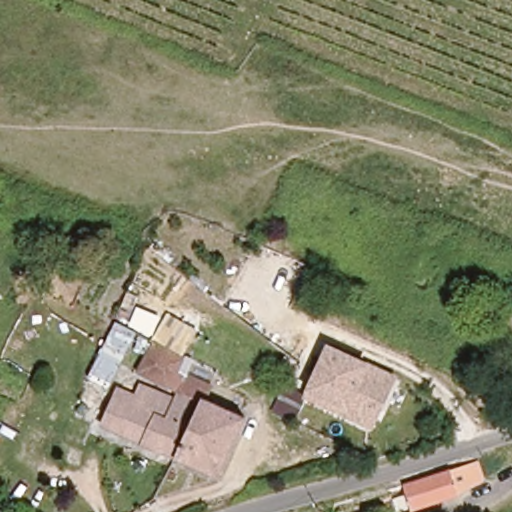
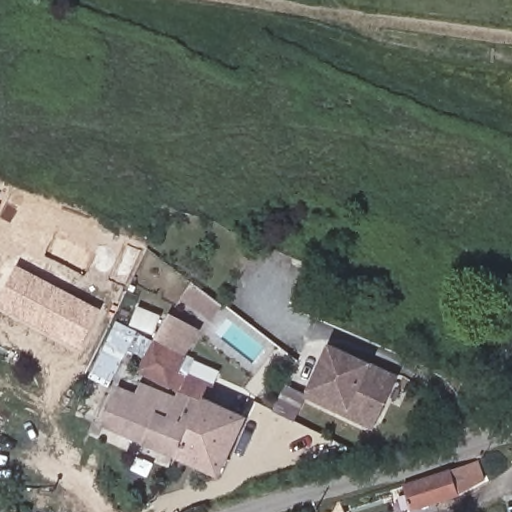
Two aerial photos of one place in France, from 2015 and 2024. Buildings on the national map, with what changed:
new [(0,308),(0,296),(17,265),(101,308),(80,348),(0,308)]
unchanged [(153,341),(169,311),(199,329),(184,360),(153,341)]
unchanged [(128,334),(132,324),(141,329),(136,338),(128,334)]
unchanged [(137,369),(146,348),(139,345),(144,336),(153,341),(184,360),(180,368),(187,372),(178,392),(137,369)]
unchanged [(377,427),(306,399),(328,344),(399,375),(377,427)]
unchanged [(174,456),(104,425),(115,399),(130,406),(140,383),(175,399),(177,395),(178,392),(187,372),(209,382),(203,397),(244,416),(218,475),(174,456)]
unchanged [(477,459),(487,479),(484,481),(413,512),(411,512),(403,490),(477,459)]

